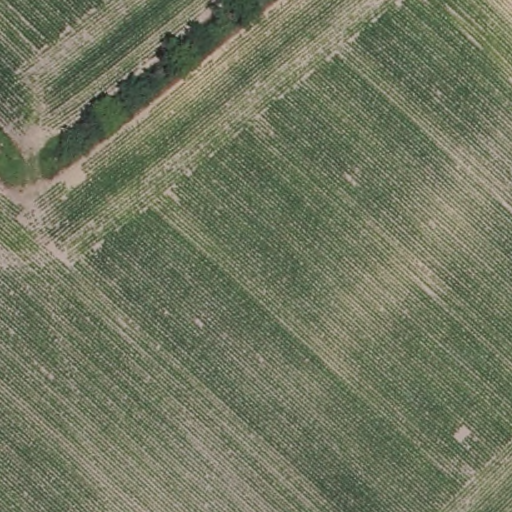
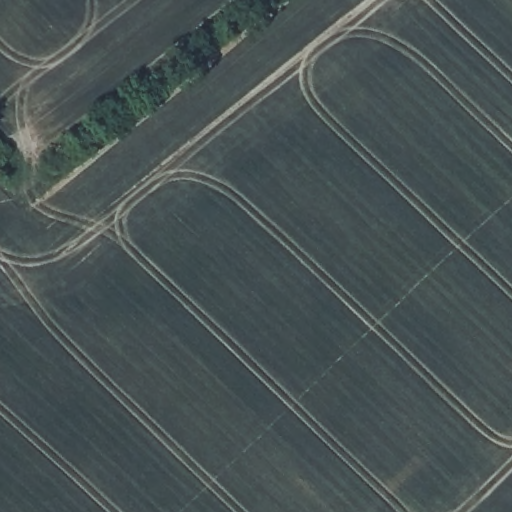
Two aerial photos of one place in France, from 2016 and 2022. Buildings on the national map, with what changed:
unchanged [(0,157),(0,144),(7,151),(0,157)]

